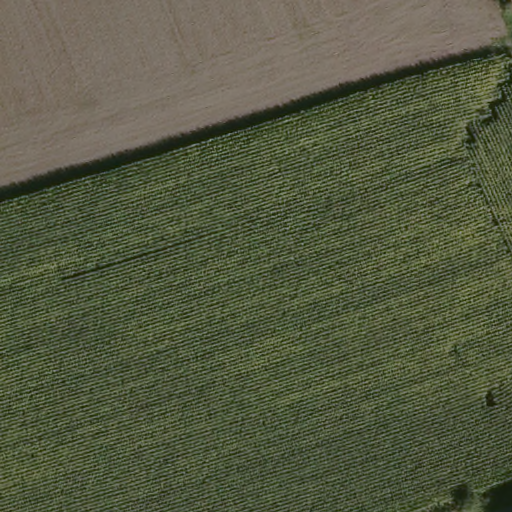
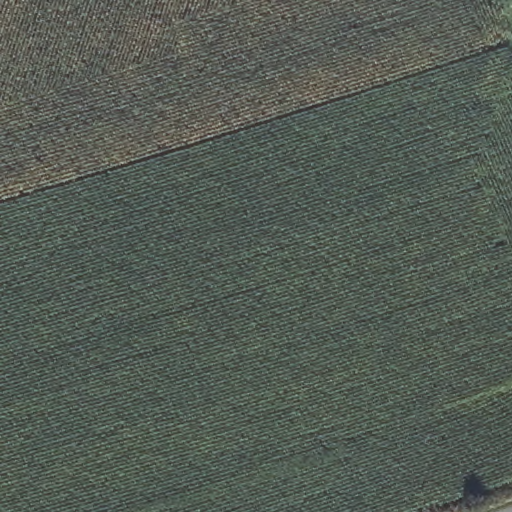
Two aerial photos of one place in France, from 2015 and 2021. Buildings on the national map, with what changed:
[]

